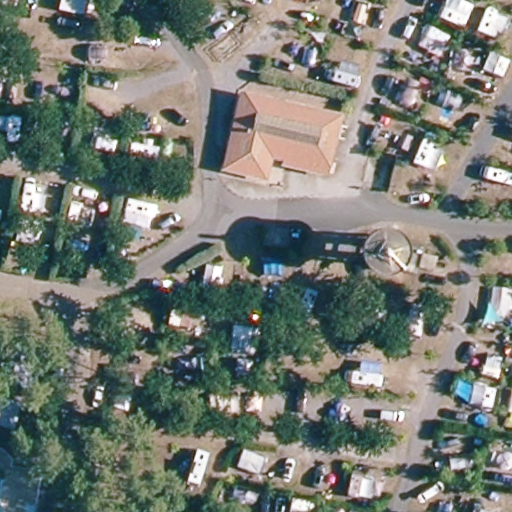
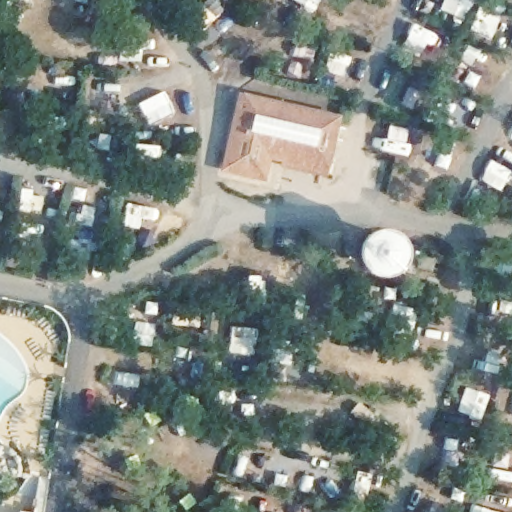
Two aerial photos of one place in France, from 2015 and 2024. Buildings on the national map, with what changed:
unchanged [(252,159),(247,175),(215,166),(234,95),(323,119),(313,162),(310,173),(252,159)]
unchanged [(199,470),(166,465),(170,445),(202,451),(199,470)]

